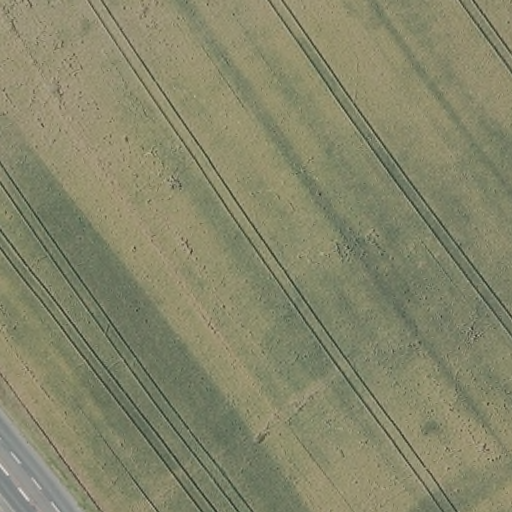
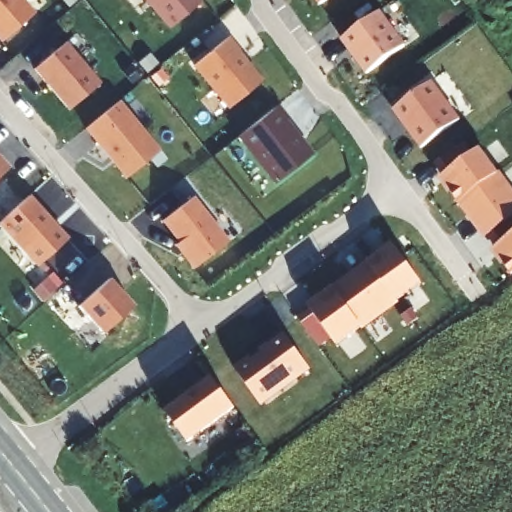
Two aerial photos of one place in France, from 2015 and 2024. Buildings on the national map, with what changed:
new [(0,39),(0,0),(21,0),(31,12),(0,39)]
new [(144,0),(203,0),(203,1),(186,16),(169,30),(144,0)]
new [(315,0),(325,0),(319,4),(315,0)]
new [(405,43),(366,73),(341,39),(381,10),(405,43)]
new [(228,107),(193,64),(226,37),(238,51),(236,52),(260,80),(228,107)]
new [(34,70),(67,42),(102,83),(69,111),(34,70)]
new [(432,79),(462,117),(424,146),(394,109),(432,79)]
new [(158,149),(125,177),(84,127),(118,100),(158,149)]
new [(290,117),(289,118),(314,152),(276,183),(238,136),(279,104),(290,117)]
new [(512,192),(512,275),(510,276),(491,250),(502,243),(494,232),(484,240),(437,180),(481,148),(499,174),(512,192)]
new [(9,167),(0,176),(0,156),(9,167)]
new [(68,238),(38,267),(0,227),(0,223),(30,194),(68,238)]
new [(176,247),(179,245),(161,223),(194,197),(229,242),(193,270),(176,247)]
new [(331,339),(320,347),(301,322),(313,313),(306,304),(367,260),(371,266),(381,259),(376,253),(393,242),(424,284),(337,346),(331,339)]
new [(135,306),(104,335),(79,307),(110,279),(135,306)]
new [(259,404),(234,368),(268,344),(266,341),(281,330),(309,367),(259,404)]
new [(186,441),(165,411),(211,377),(233,407),(186,441)]

